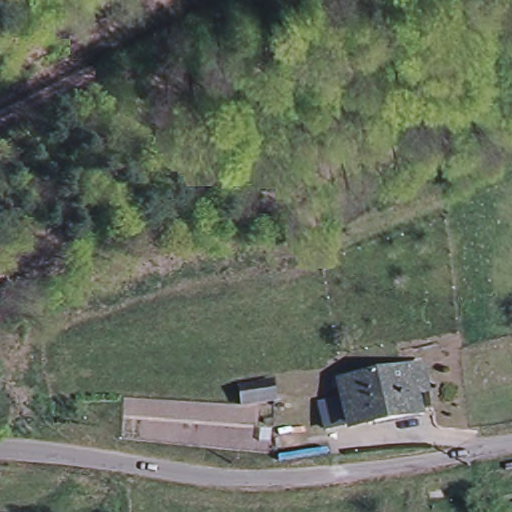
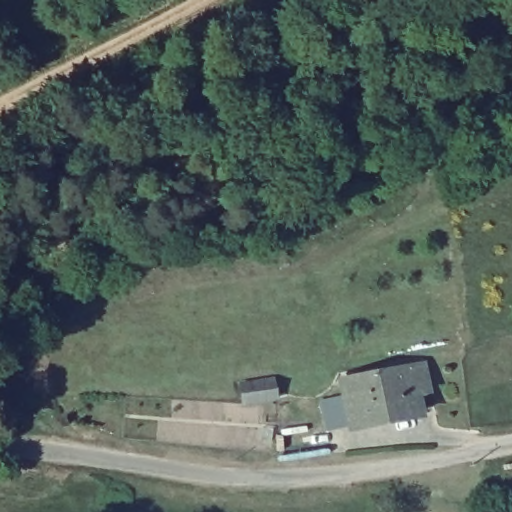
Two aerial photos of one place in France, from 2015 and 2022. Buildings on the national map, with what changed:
unchanged [(356,371),(404,363),(413,362),(416,380),(407,381),(410,406),(361,413),(341,416),(341,414),(319,417),(315,390),(336,388),(335,374),(356,371)]

